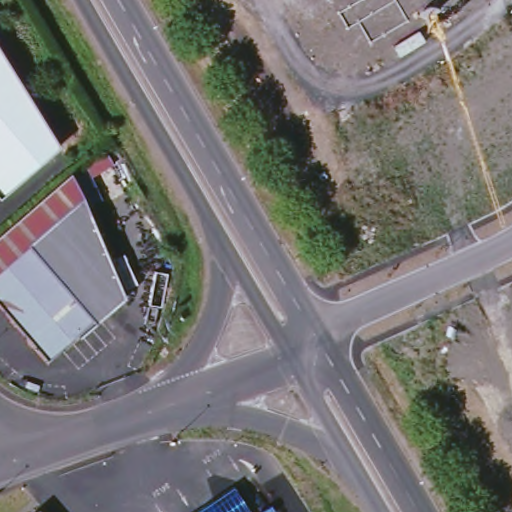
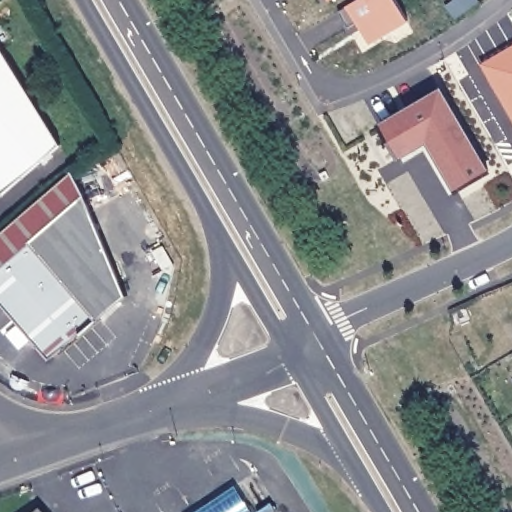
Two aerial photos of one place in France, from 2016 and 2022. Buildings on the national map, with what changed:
new [(360,0),(398,0),(409,20),(371,42),(359,22),(349,28),(339,12),(360,0)]
new [(479,66),(512,43),(512,128),(479,66)]
unchanged [(6,191),(0,184),(0,60),(67,140),(6,191)]
new [(442,91),(489,172),(458,190),(429,140),(401,157),(382,125),(442,91)]
unchanged [(128,294),(81,334),(79,333),(49,359),(0,302),(0,267),(84,193),(128,294)]
unchanged [(256,512),(196,512),(239,483),(256,512)]
unchanged [(277,512),(259,512),(273,504),(277,512)]
unchanged [(40,512),(36,512),(38,510),(40,512)]

